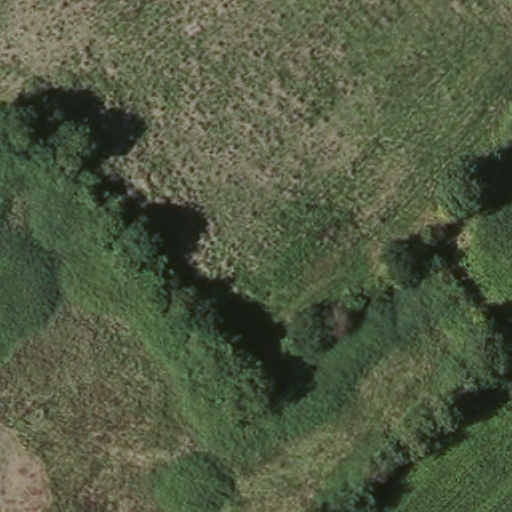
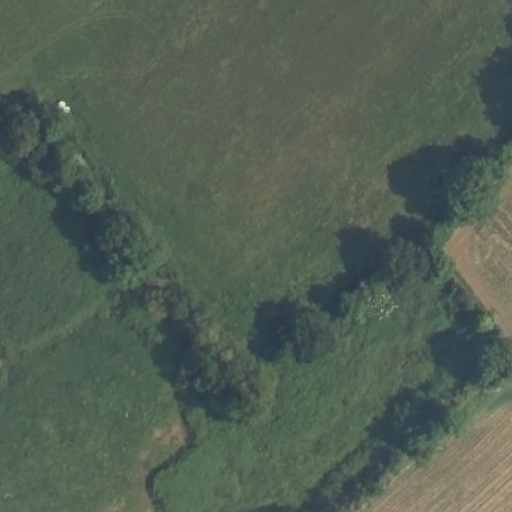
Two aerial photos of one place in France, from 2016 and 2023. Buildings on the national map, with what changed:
[]

